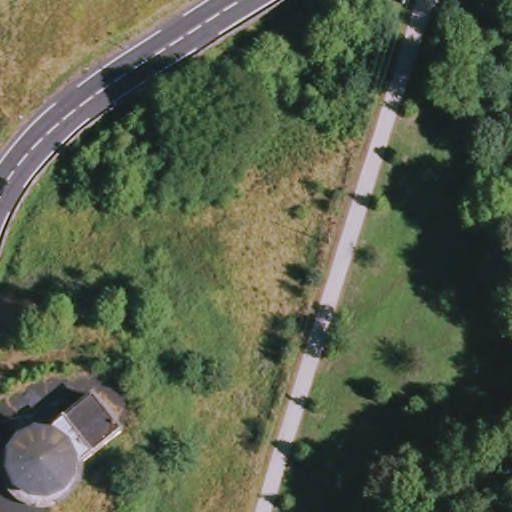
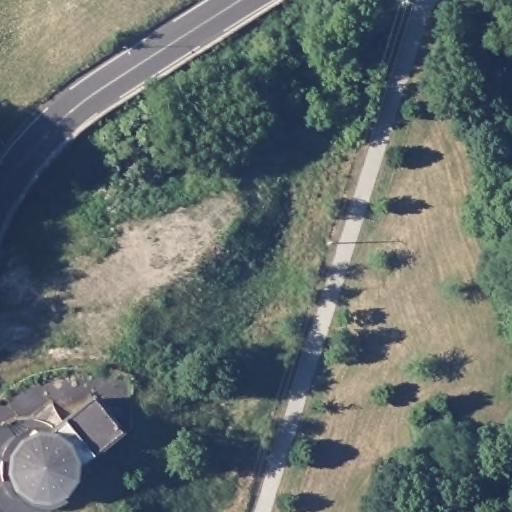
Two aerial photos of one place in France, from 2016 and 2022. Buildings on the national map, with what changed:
unchanged [(93,476),(89,491),(80,502),(66,509),(66,512),(11,512),(5,506),(0,493),(0,450),(18,431),(33,427),(65,436),(105,403),(136,439),(93,476)]

